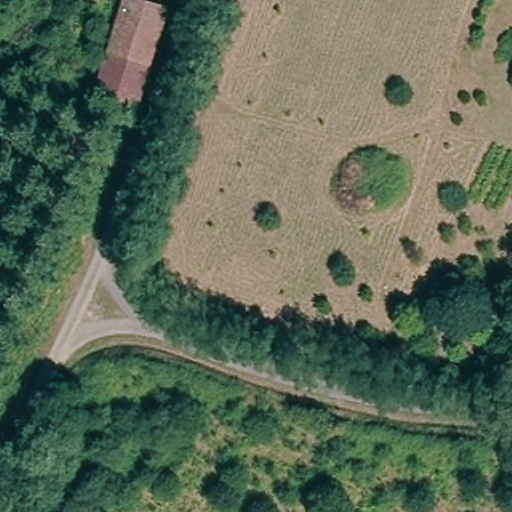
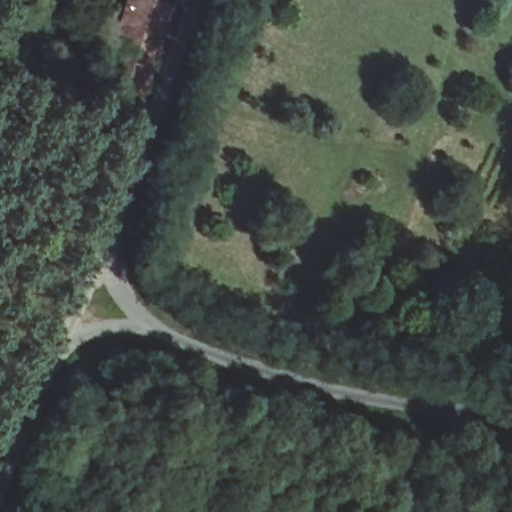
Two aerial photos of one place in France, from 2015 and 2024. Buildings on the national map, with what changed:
unchanged [(125,0),(136,0),(169,10),(135,106),(95,96),(125,0)]

